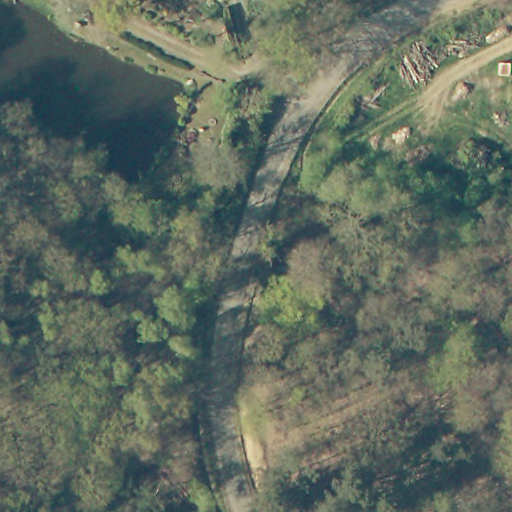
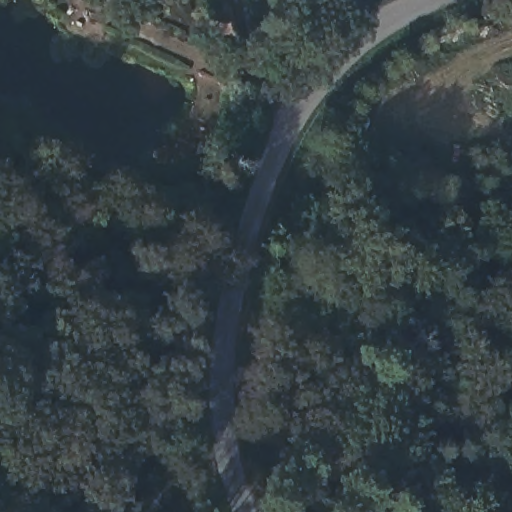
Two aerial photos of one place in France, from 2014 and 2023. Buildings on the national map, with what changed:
[]

